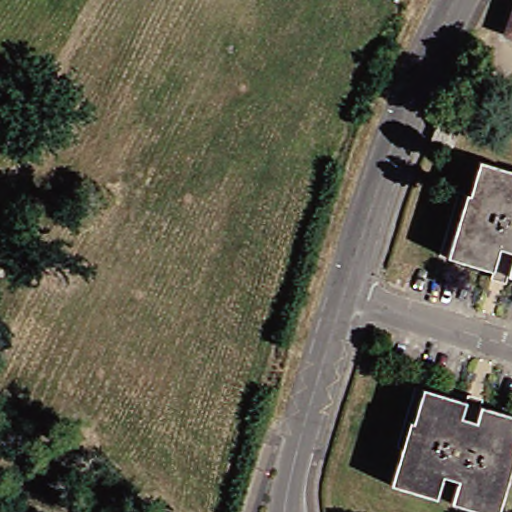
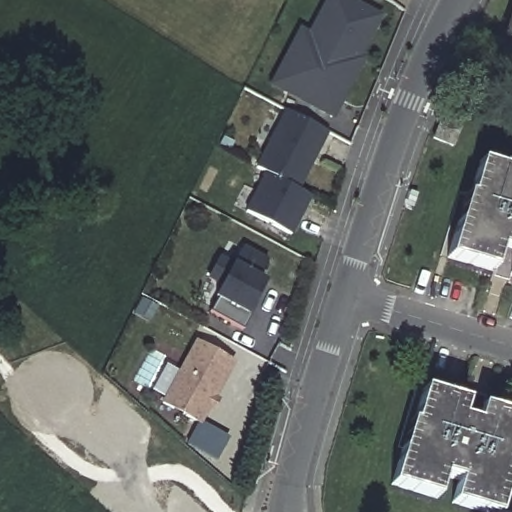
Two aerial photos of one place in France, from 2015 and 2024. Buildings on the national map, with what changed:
new [(268,87),(297,28),(308,33),(325,0),(353,0),(383,16),(361,58),(365,60),(334,121),(268,87)]
unchanged [(512,28),(512,33),(510,33),(512,28)]
new [(245,211),(264,172),(255,167),(282,110),(328,133),(299,191),(311,196),(292,236),(245,211)]
unchanged [(439,120),(459,127),(453,144),(433,138),(439,120)]
unchanged [(499,270),(453,257),(472,193),(473,194),(483,161),(512,170),(512,281),(511,282),(497,278),(499,270)]
unchanged [(210,312),(215,300),(222,287),(207,280),(219,257),(235,263),(242,247),(266,259),(258,278),(267,283),(243,330),(210,312)]
new [(201,426),(161,405),(194,341),(235,362),(201,426)]
unchanged [(448,476),(441,499),(394,485),(405,448),(413,421),(416,422),(427,388),(470,401),(472,394),(486,399),(484,406),(512,414),(512,484),(503,512),(485,512),(455,503),(462,480),(448,476)]

